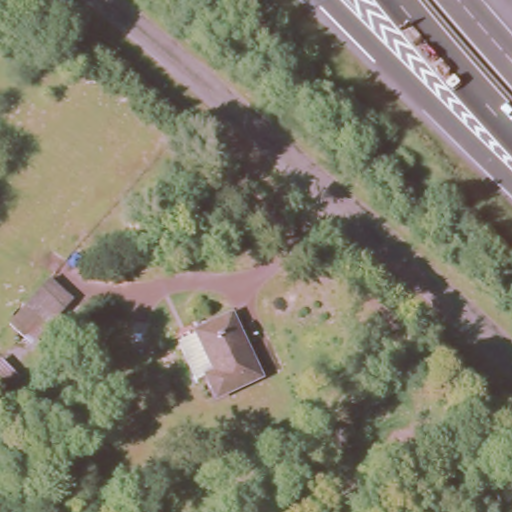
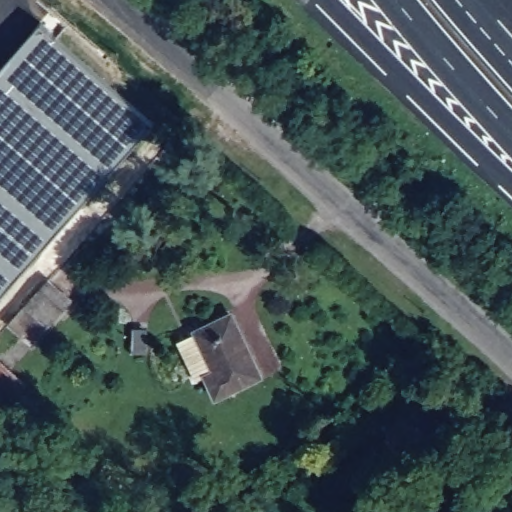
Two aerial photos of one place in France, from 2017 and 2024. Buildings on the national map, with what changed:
new [(40,21),(155,121),(0,295),(0,66),(40,21)]
unchanged [(30,347),(8,328),(53,271),(80,299),(30,347)]
unchanged [(218,381),(207,361),(215,357),(197,316),(234,299),(262,360),(218,381)]
unchanged [(37,385),(3,420),(0,416),(0,353),(2,351),(37,385)]

